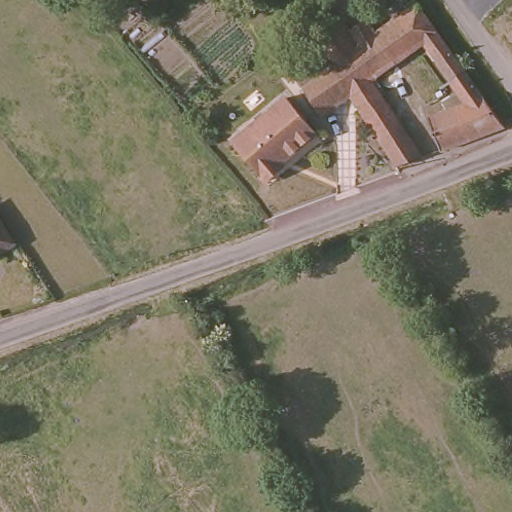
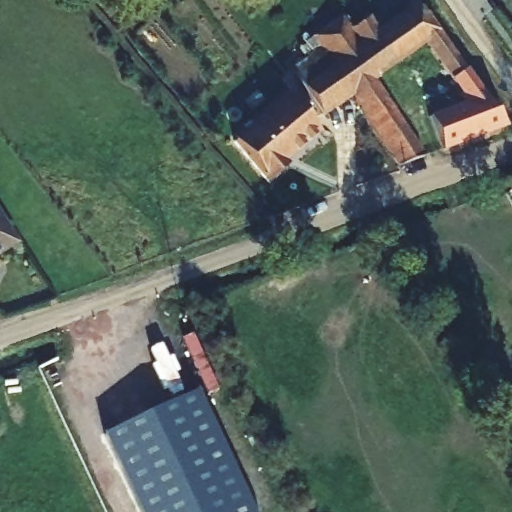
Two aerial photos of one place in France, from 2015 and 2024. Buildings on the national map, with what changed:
unchanged [(403,169),(352,100),(349,96),(318,51),(310,40),(336,24),(344,19),(353,30),(371,19),(381,30),(417,5),(417,4),(480,88),(512,129),(462,148),(444,154),(430,119),(450,111),(447,105),(458,99),(417,49),(367,85),(422,161),(403,169)]
unchanged [(349,96),(324,115),(292,68),(318,51),(349,96)]
unchanged [(252,166),(233,141),(289,101),(308,126),(252,166)]
unchanged [(316,136),(281,161),(284,166),(263,181),(252,166),(308,126),(316,136)]
unchanged [(0,259),(0,225),(16,250),(0,259)]
new [(193,337),(219,393),(209,398),(182,341),(193,337)]
new [(105,438),(200,393),(254,512),(140,512),(105,438)]

